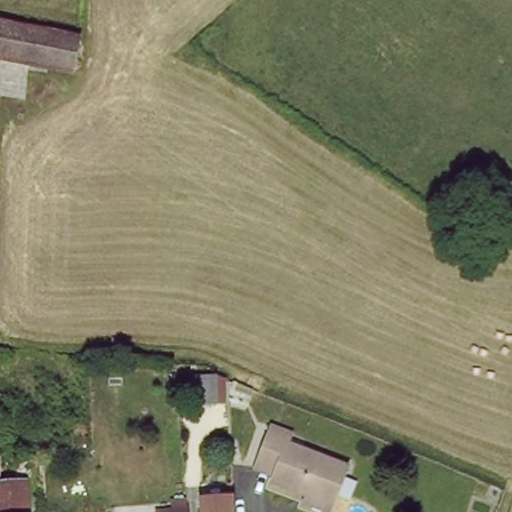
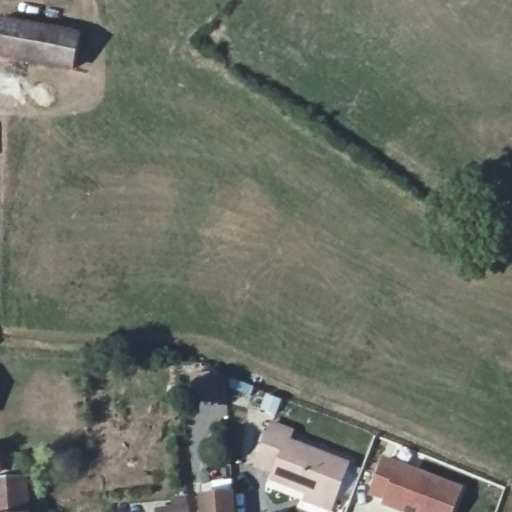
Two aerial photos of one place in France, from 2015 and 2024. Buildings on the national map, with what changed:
unchanged [(76,29),(74,65),(0,56),(0,20),(76,29)]
unchanged [(228,390),(208,390),(206,366),(226,365),(228,390)]
unchanged [(309,497),(312,490),(277,477),(279,471),(259,464),(275,420),(295,426),(291,437),(350,458),(336,498),(333,505),(309,497)]
new [(455,512),(401,512),(383,505),(385,501),(369,495),(384,457),(465,487),(455,512)]
unchanged [(20,475),(23,512),(0,512),(0,477),(20,475)]
unchanged [(203,512),(202,496),(231,493),(233,512),(203,512)]

